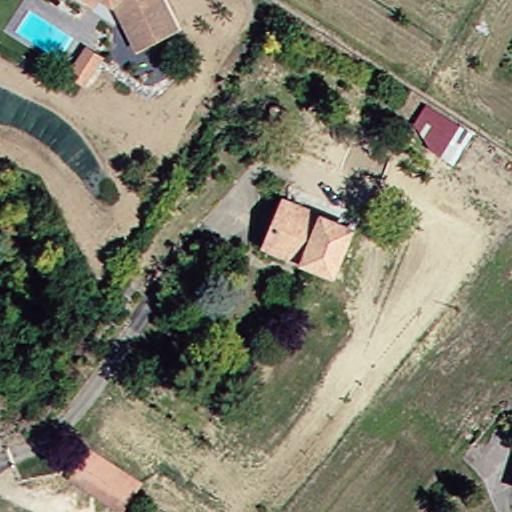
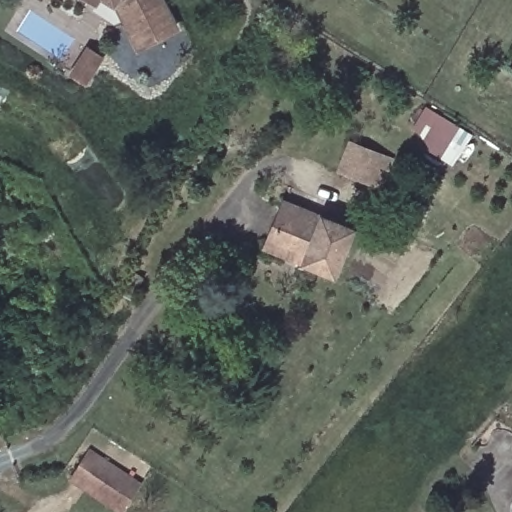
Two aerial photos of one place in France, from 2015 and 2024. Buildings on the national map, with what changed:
unchanged [(125,5),(118,0),(169,0),(179,20),(183,27),(172,34),(146,47),(125,5)]
unchanged [(78,82),(64,72),(80,47),(94,57),(78,82)]
unchanged [(424,107),(472,135),(453,165),(427,149),(414,125),(424,107)]
new [(349,142),(389,160),(377,187),(368,183),(337,170),(349,142)]
unchanged [(267,249),(273,235),(288,197),(353,226),(335,269),(306,256),(302,265),(267,249)]
unchanged [(78,447),(132,487),(117,512),(111,512),(60,478),(78,447)]

